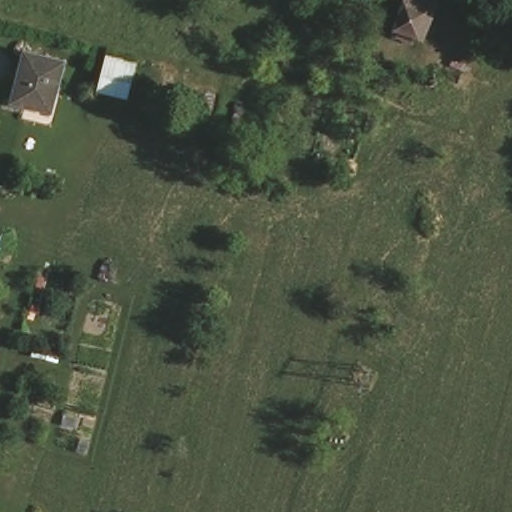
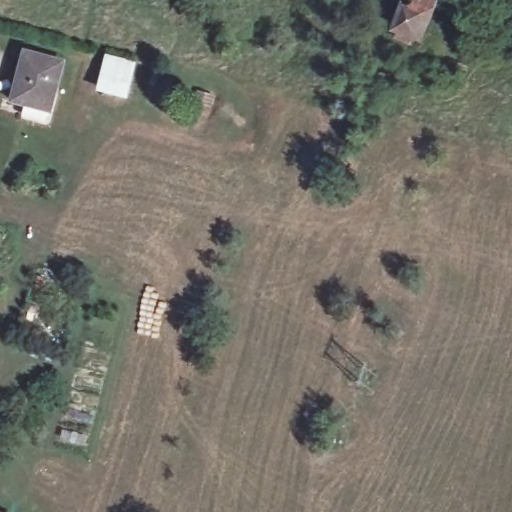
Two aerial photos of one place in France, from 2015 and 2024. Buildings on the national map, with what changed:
unchanged [(430,0),(418,37),(398,31),(405,0),(430,0)]
unchanged [(23,50),(60,60),(50,108),(13,99),(23,50)]
unchanged [(112,64),(137,71),(130,99),(105,92),(112,64)]

